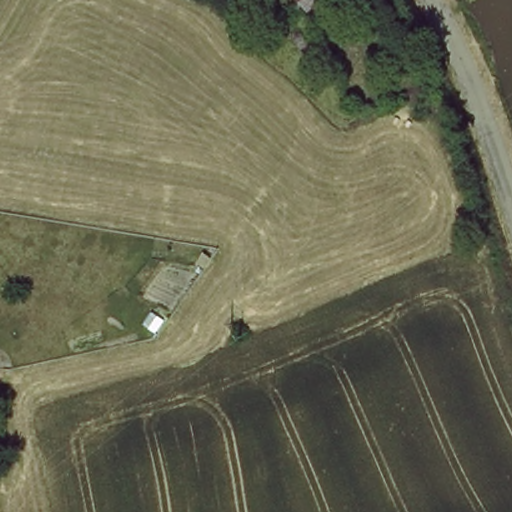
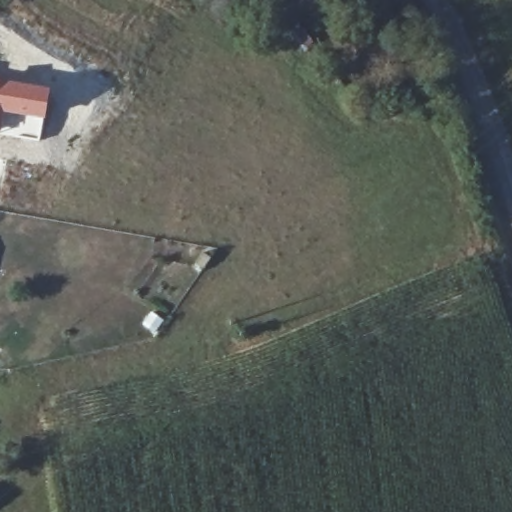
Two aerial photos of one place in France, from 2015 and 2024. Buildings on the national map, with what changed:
unchanged [(316,19),(297,0),(336,0),(316,19)]
new [(43,124),(0,115),(0,80),(50,90),(43,124)]

